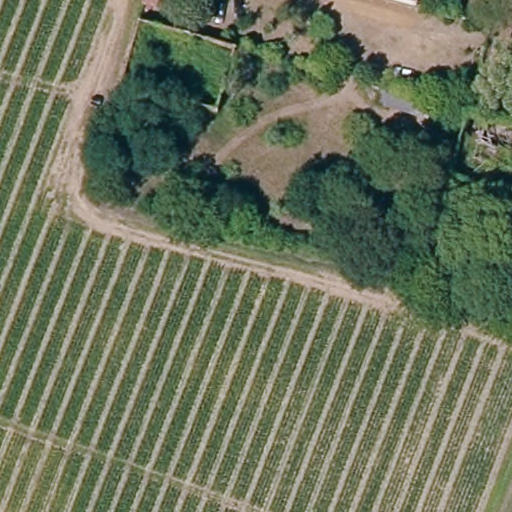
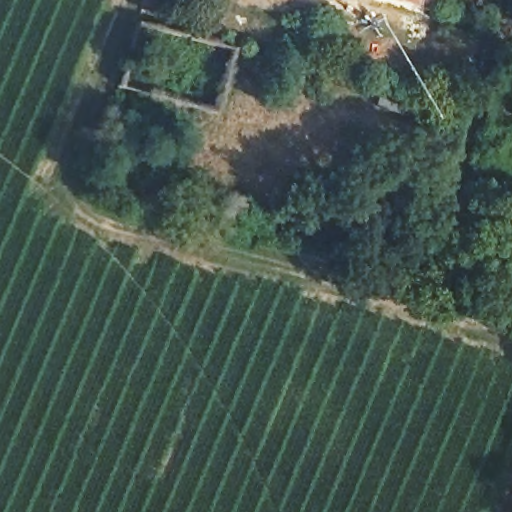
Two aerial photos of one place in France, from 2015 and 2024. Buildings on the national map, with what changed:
unchanged [(145,6),(146,0),(161,0),(158,10),(145,6)]
unchanged [(416,0),(412,12),(370,0),(416,0)]

